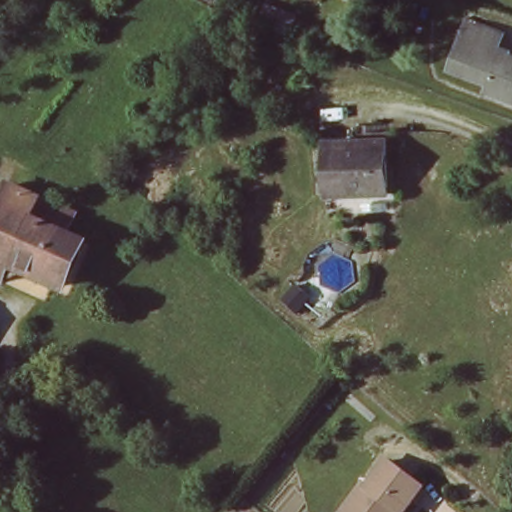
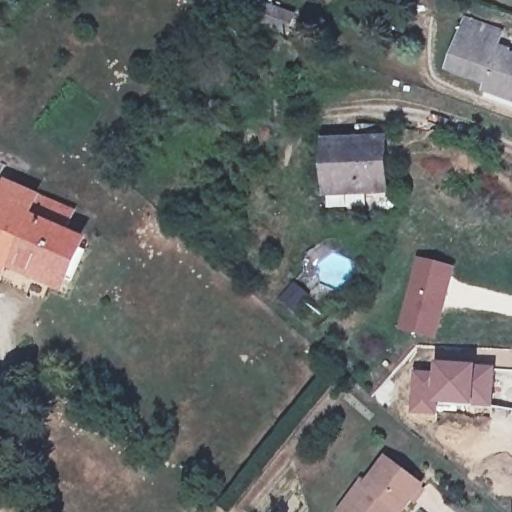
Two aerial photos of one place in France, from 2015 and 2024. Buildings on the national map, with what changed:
unchanged [(491,87),(493,78),(451,65),(468,17),(503,30),(498,45),(512,50),(512,93),(491,87)]
unchanged [(321,184),(320,141),(383,140),(384,193),(353,194),(321,195),(321,184)]
unchanged [(71,214),(62,236),(78,242),(61,287),(8,265),(0,281),(0,195),(4,185),(71,214)]
new [(435,340),(398,330),(417,260),(455,268),(435,340)]
unchanged [(290,273),(305,287),(291,302),(276,288),(290,273)]
new [(411,368),(434,370),(435,362),(495,366),(492,410),(437,407),(435,417),(407,415),(411,368)]
unchanged [(365,488),(384,463),(418,488),(400,512),(339,512),(359,486),(365,488)]

